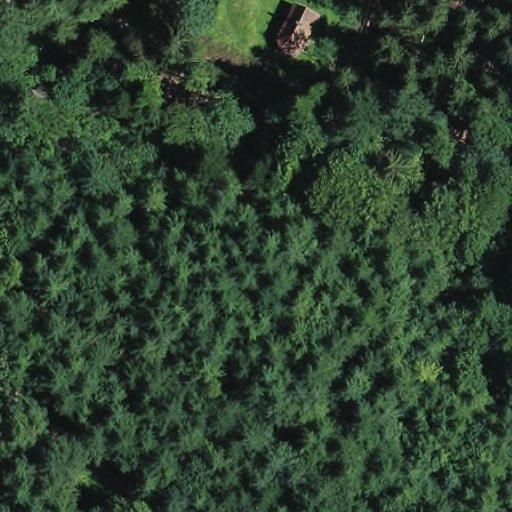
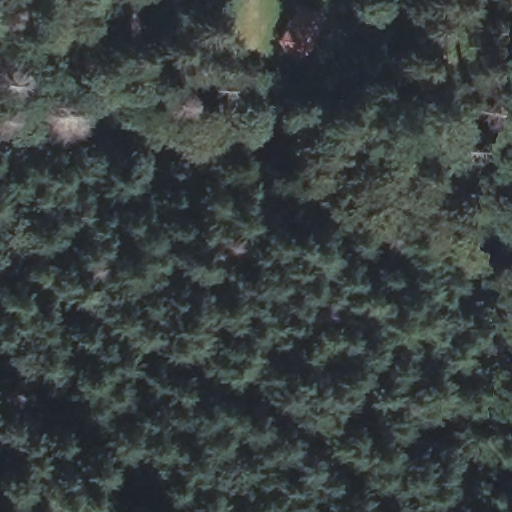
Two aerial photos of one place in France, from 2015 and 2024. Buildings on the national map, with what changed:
unchanged [(286,44),(308,8),(326,19),(304,54),(286,44)]

